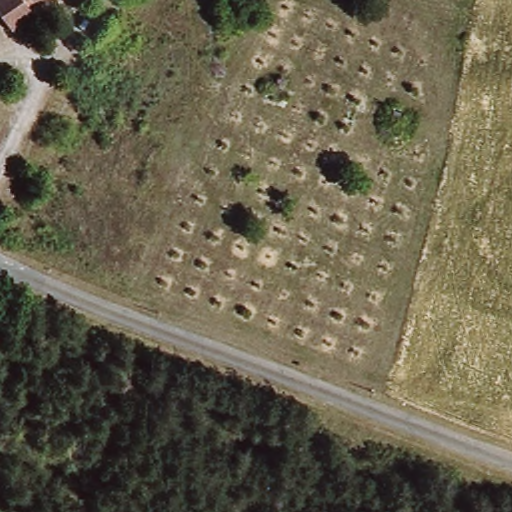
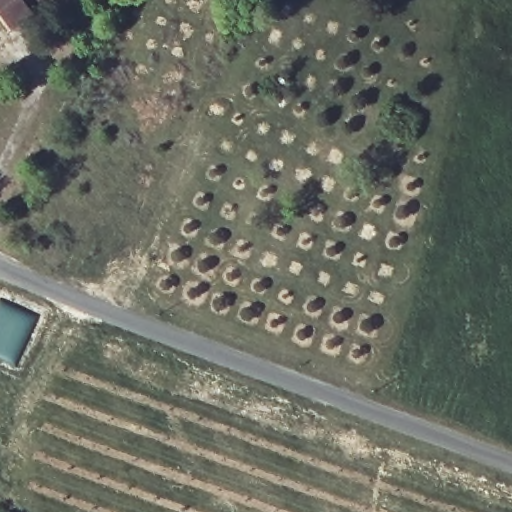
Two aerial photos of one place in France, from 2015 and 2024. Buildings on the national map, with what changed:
unchanged [(0,0),(45,0),(49,5),(17,26),(0,0)]

